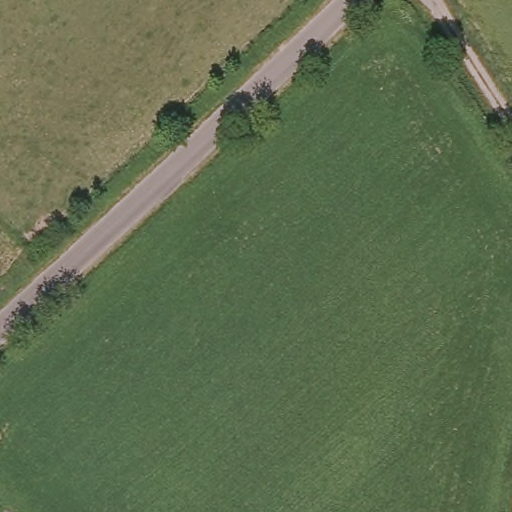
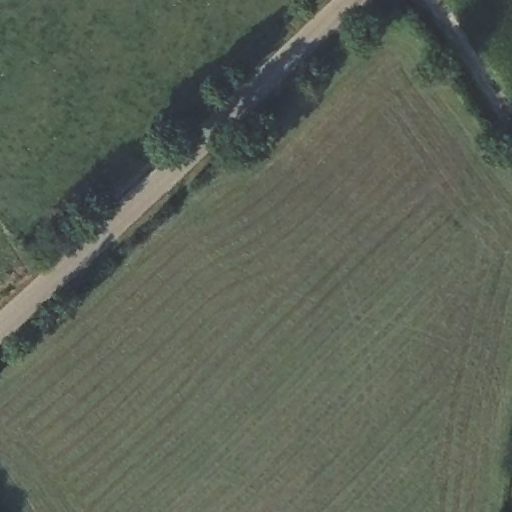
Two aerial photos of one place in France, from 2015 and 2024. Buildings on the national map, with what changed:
[]

